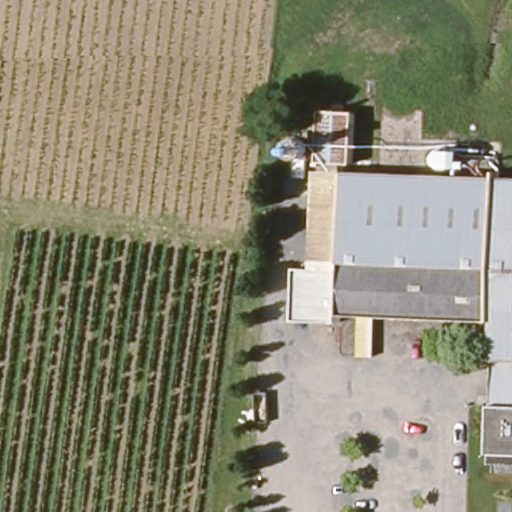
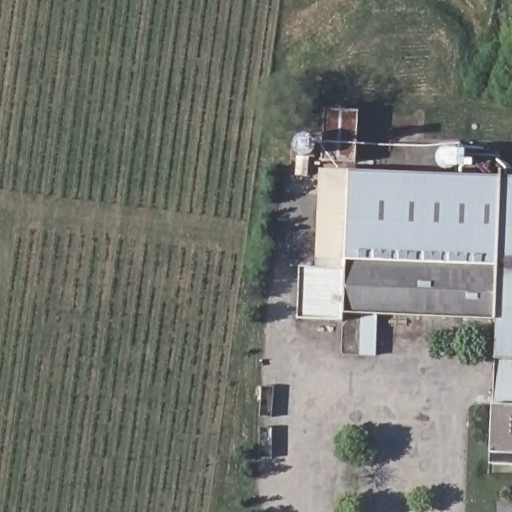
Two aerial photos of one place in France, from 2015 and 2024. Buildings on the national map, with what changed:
unchanged [(353,170),(318,168),(321,117),(355,118),(353,170)]
unchanged [(297,328),(297,276),(344,277),(346,179),(512,183),(512,470),(492,469),(497,327),(372,322),(371,361),(361,361),(361,322),(342,321),(342,329),(297,328)]

